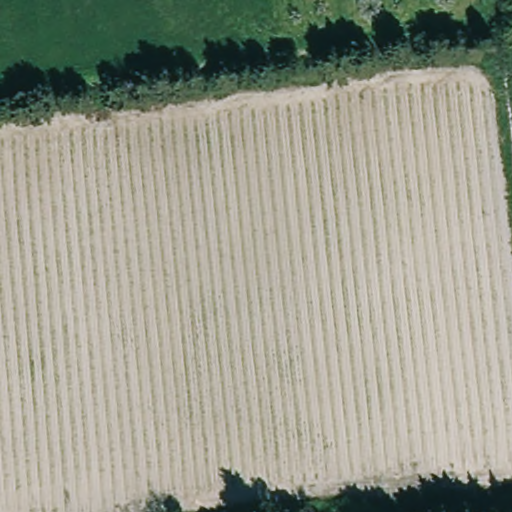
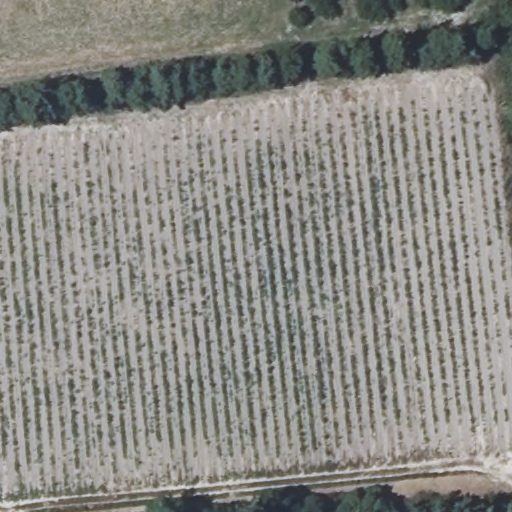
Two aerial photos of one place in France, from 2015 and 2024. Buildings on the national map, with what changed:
unchanged [(283,507),(283,512),(272,512),(272,509),(283,507)]

